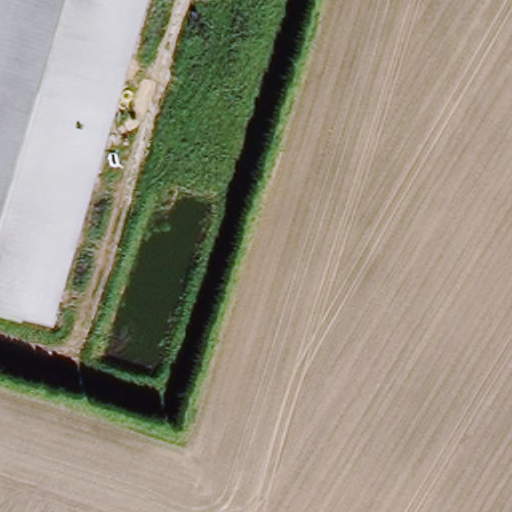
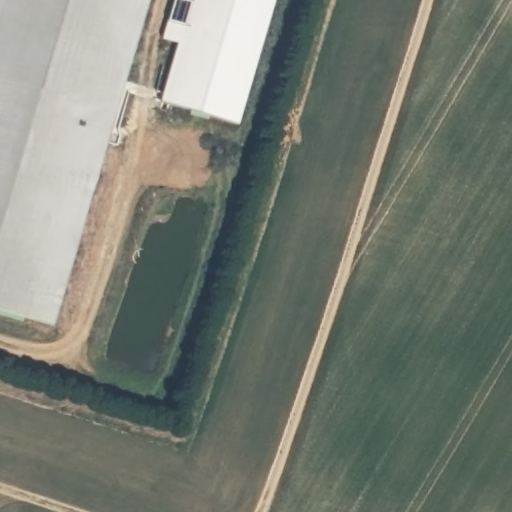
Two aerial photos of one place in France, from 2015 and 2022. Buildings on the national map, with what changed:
unchanged [(0,0),(150,0),(52,326),(0,311),(0,0)]
new [(165,101),(179,44),(164,40),(177,0),(193,0),(276,0),(240,122),(165,101)]

